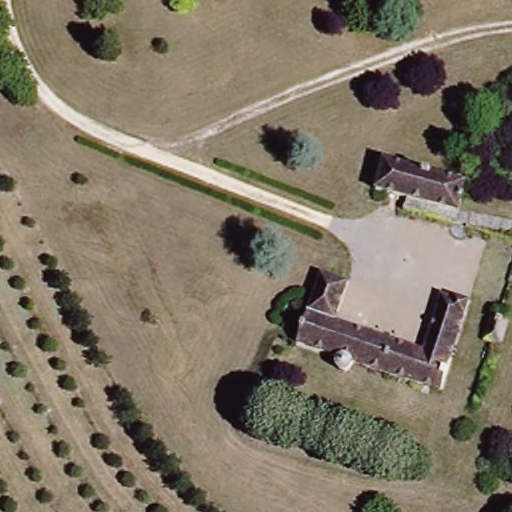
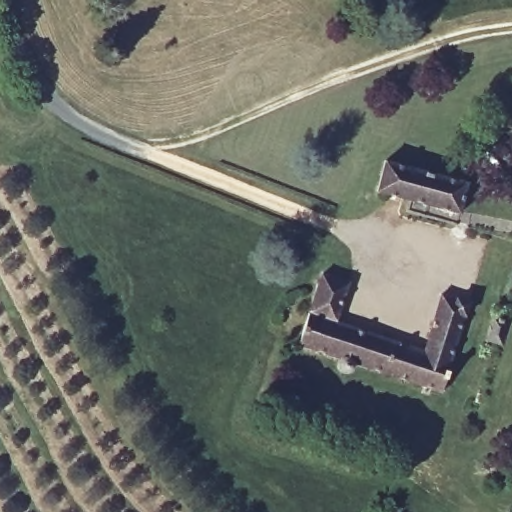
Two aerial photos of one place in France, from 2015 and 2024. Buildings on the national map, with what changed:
unchanged [(467,179),(460,211),(379,192),(387,160),(467,179)]
unchanged [(356,362),(350,371),(339,370),(338,357),(300,342),(322,275),(348,285),(336,320),(424,352),(445,294),(472,303),(442,392),(356,362)]
unchanged [(507,346),(485,340),(492,315),(512,321),(512,329),(507,346)]

